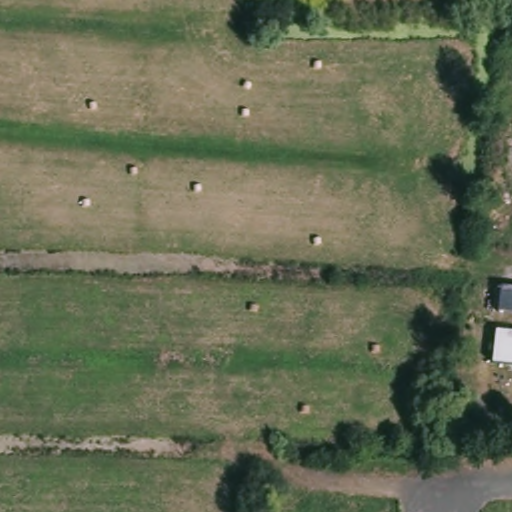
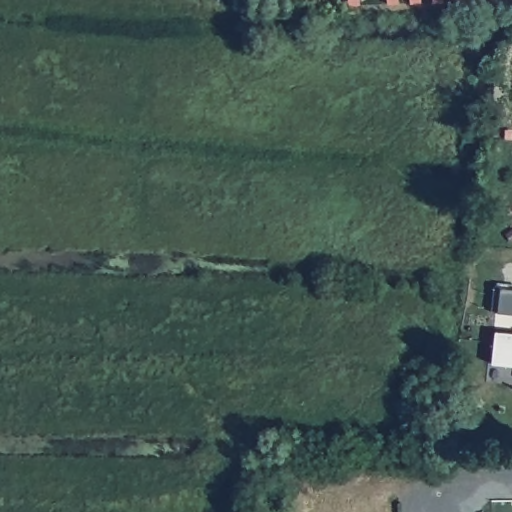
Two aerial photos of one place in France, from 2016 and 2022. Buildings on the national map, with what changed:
unchanged [(512,315),(495,313),(498,287),(512,288),(512,315)]
unchanged [(496,332),(512,334),(512,365),(491,363),(496,332)]

